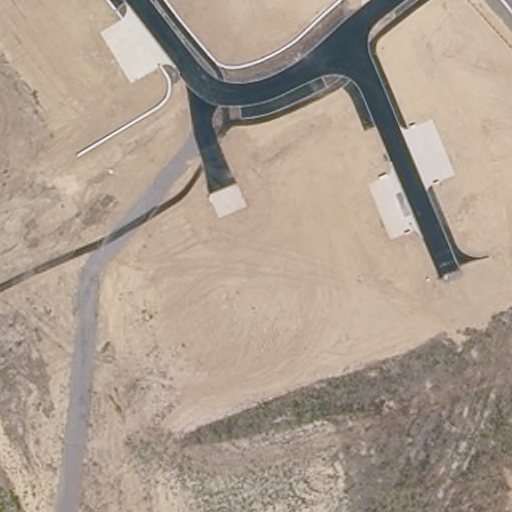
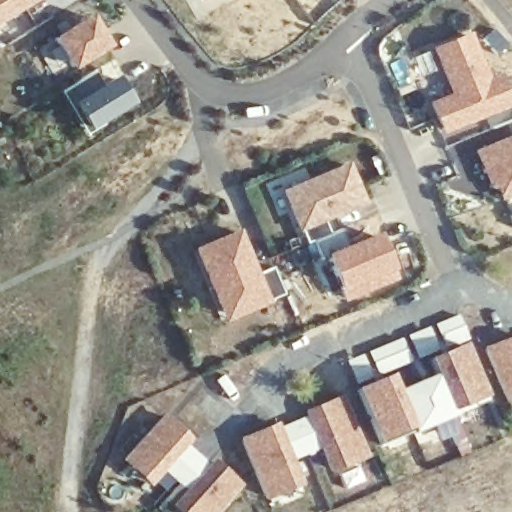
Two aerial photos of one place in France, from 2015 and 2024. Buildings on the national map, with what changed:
new [(0,22),(0,0),(37,0),(0,22)]
new [(109,48),(68,72),(48,38),(89,14),(109,48)]
new [(489,77),(501,72),(512,100),(512,108),(443,136),(429,103),(450,95),(431,49),(470,34),(489,77)]
new [(93,72),(102,87),(116,80),(129,102),(100,120),(103,125),(86,135),(60,92),(75,83),(93,72)]
new [(496,190),(490,191),(474,150),(512,135),(512,197),(501,201),(496,190)]
new [(330,235),(307,244),(285,193),(349,166),(364,202),(331,216),(324,219),(330,235)]
new [(258,273),(271,268),(282,295),(268,301),(269,304),(224,322),(192,249),(239,230),(258,273)]
new [(330,235),(342,230),(350,247),(376,235),(394,276),(345,297),(328,256),(319,260),(314,241),(330,235)]
new [(508,405),(483,346),(512,335),(512,404),(508,405)]
new [(452,408),(454,413),(412,431),(410,426),(378,439),(355,387),(392,372),(399,388),(434,373),(427,357),(464,341),(486,394),(452,408)]
new [(332,471),(322,448),(295,459),(305,484),(264,498),(240,436),(280,421),(282,427),(308,416),(306,410),(346,392),(370,455),(332,471)]
new [(178,512),(169,505),(185,489),(164,470),(150,485),(120,458),(164,411),(192,437),(187,443),(208,462),(213,457),(242,483),(216,512),(178,512)]

